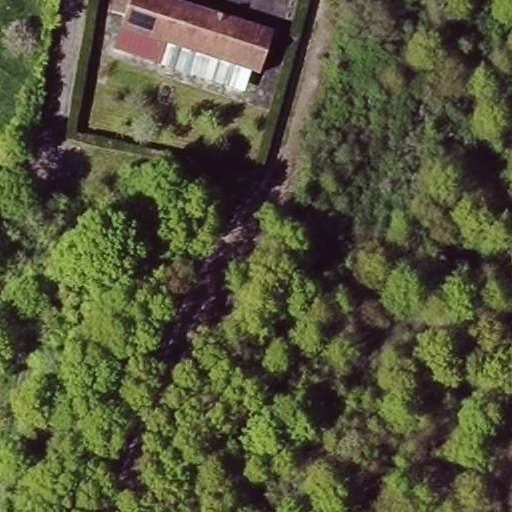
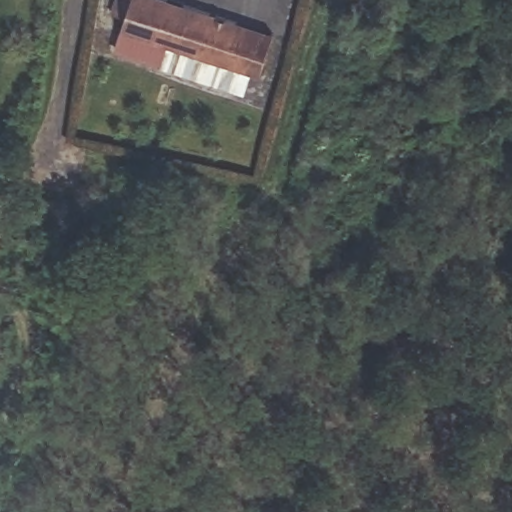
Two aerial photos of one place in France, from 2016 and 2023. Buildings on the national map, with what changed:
unchanged [(122,23),(112,19),(119,0),(161,0),(250,33),(235,74),(120,31),(122,23)]
unchanged [(365,0),(383,0),(391,3),(378,39),(355,31),(365,0)]
unchanged [(235,74),(253,80),(245,100),(114,53),(120,31),(235,74)]
unchanged [(250,33),(273,41),(258,82),(235,74),(250,33)]

